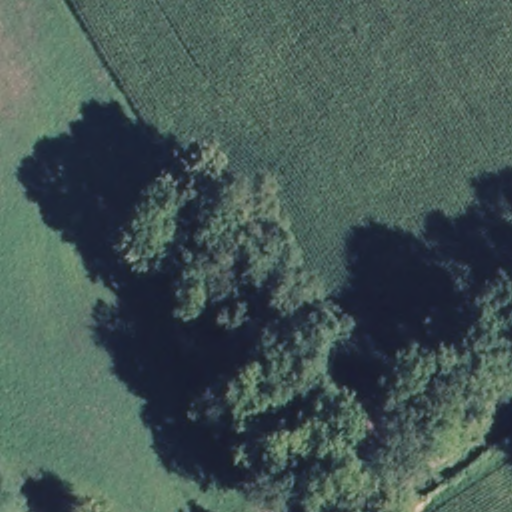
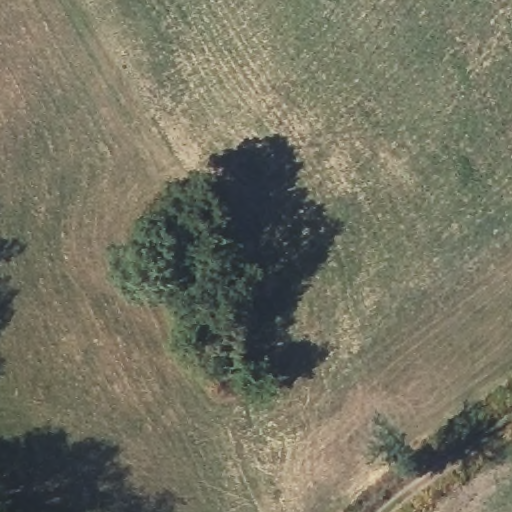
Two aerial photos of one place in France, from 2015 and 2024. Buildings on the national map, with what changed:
[]

